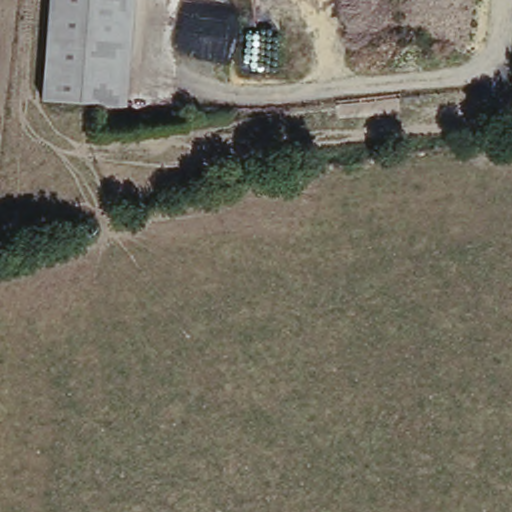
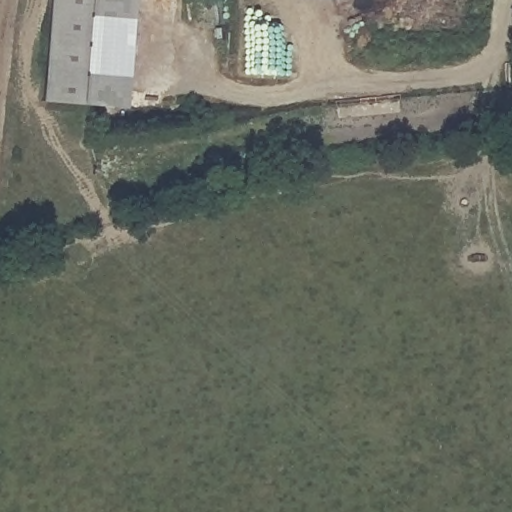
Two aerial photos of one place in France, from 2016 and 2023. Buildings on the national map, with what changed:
unchanged [(124,109),(40,100),(47,0),(133,0),(124,109)]

